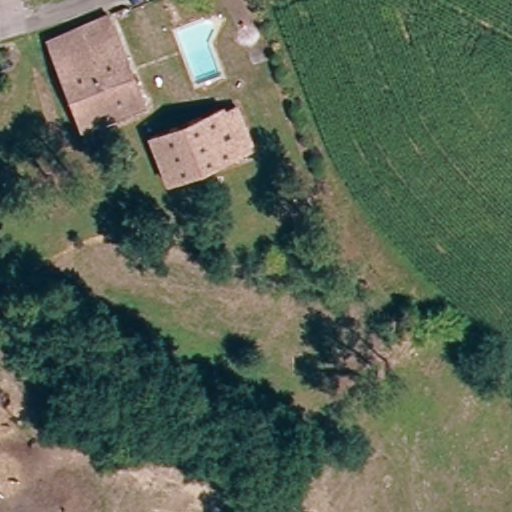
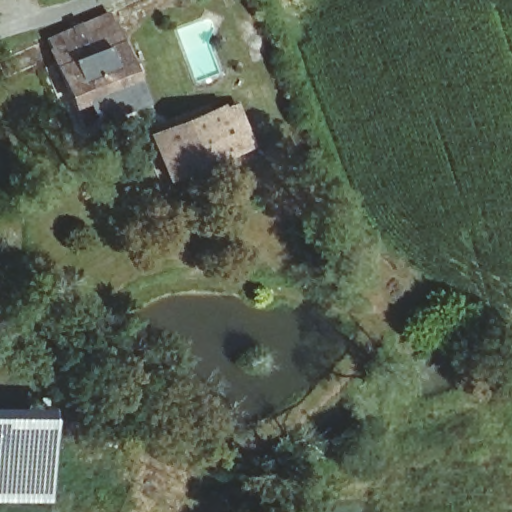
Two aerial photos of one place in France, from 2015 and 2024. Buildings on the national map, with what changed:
unchanged [(104,16),(138,107),(80,130),(45,40),(104,16)]
unchanged [(232,105),(250,149),(169,181),(151,136),(216,111),(232,105)]
new [(37,416),(47,413),(46,503),(0,502),(0,418),(37,416)]

